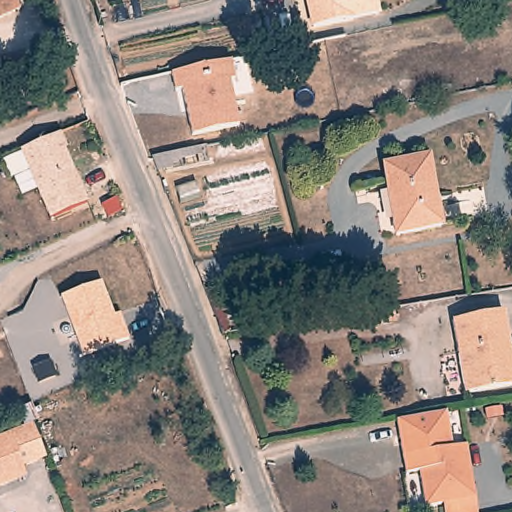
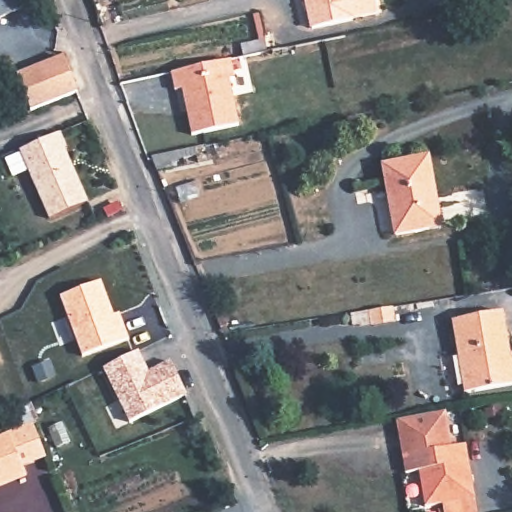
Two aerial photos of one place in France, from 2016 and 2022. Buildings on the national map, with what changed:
unchanged [(0,20),(0,0),(19,0),(24,10),(0,20)]
unchanged [(373,14),(348,19),(348,20),(307,28),(301,0),(369,0),(373,14)]
new [(24,114),(10,76),(64,55),(78,92),(24,114)]
unchanged [(182,90),(174,91),(171,74),(231,60),(236,80),(229,80),(239,125),(192,135),(186,109),(185,104),(182,90)]
unchanged [(60,133),(66,149),(64,150),(88,202),(50,219),(20,151),(60,133)]
unchanged [(195,149),(196,150),(197,156),(172,162),(173,168),(157,171),(153,160),(151,157),(195,149)]
unchanged [(436,227),(396,235),(383,166),(428,157),(436,198),(441,226),(436,227)]
unchanged [(121,325),(127,340),(81,357),(60,299),(100,284),(112,318),(118,315),(121,325)]
unchanged [(394,321),(372,325),(372,323),(349,327),(347,315),(392,307),(394,321)]
unchanged [(512,361),(512,385),(465,393),(452,321),(502,312),(509,352),(511,361),(512,361)]
new [(139,351),(149,371),(171,361),(187,394),(130,423),(103,370),(139,351)]
unchanged [(50,364),(55,378),(38,384),(33,370),(50,364)]
unchanged [(425,506),(419,471),(406,473),(396,420),(446,412),(452,447),(465,445),(475,498),(477,512),(444,512),(443,503),(425,506)]
unchanged [(10,436),(35,426),(46,458),(22,468),(10,436)]
unchanged [(26,476),(0,486),(0,440),(10,436),(26,476)]

